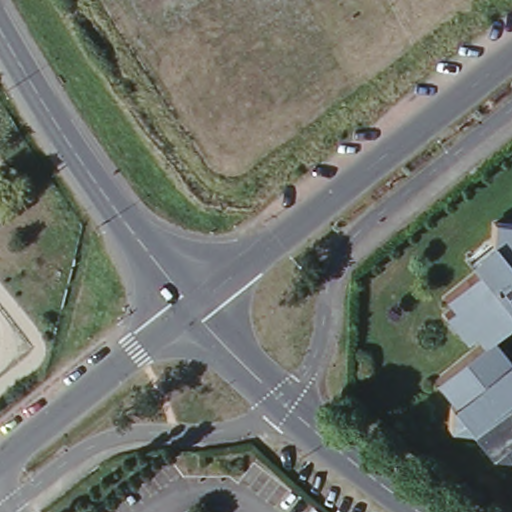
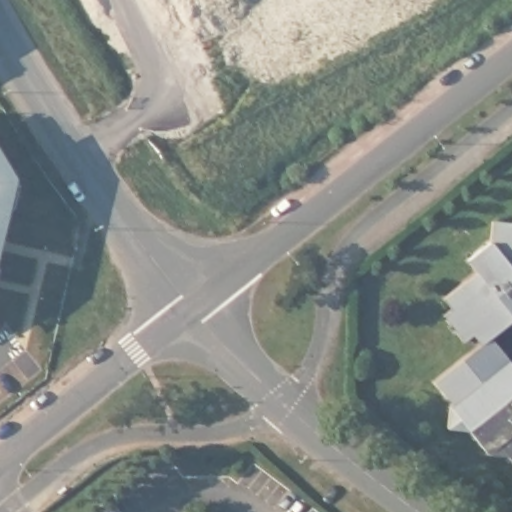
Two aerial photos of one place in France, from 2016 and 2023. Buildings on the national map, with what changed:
new [(0,268),(0,143),(23,179),(0,268)]
unchanged [(507,320),(486,338),(512,371),(512,467),(510,468),(502,456),(483,455),(462,430),(441,428),(444,405),(447,403),(428,382),(475,345),(467,335),(459,343),(437,316),(445,309),(437,298),(471,272),(461,260),(484,243),(485,221),(512,225),(512,321),(507,320)]

